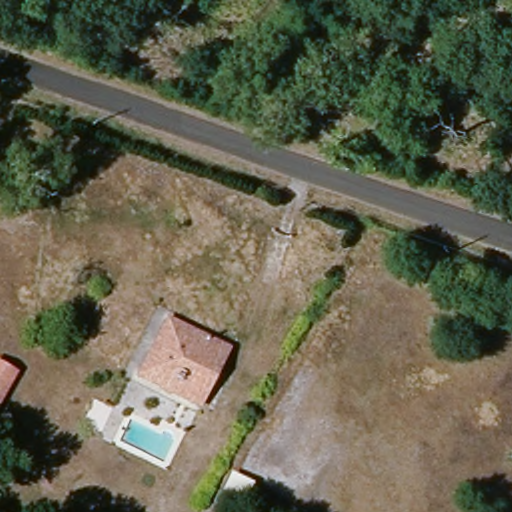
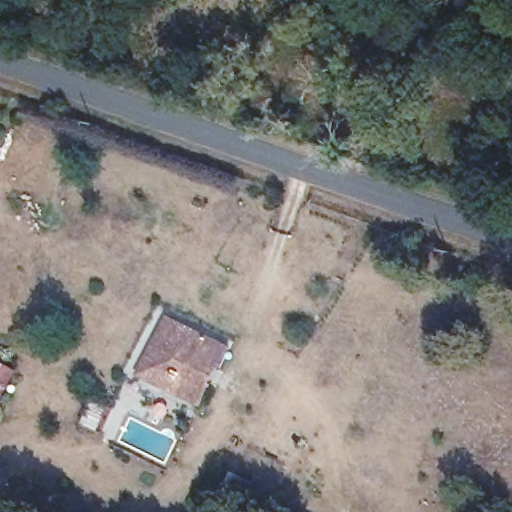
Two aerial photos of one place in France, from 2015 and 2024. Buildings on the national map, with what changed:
unchanged [(180,402),(135,373),(166,317),(212,342),(180,402)]
unchanged [(228,352),(195,411),(180,402),(212,342),(228,352)]
unchanged [(0,367),(16,378),(0,403),(0,367)]

